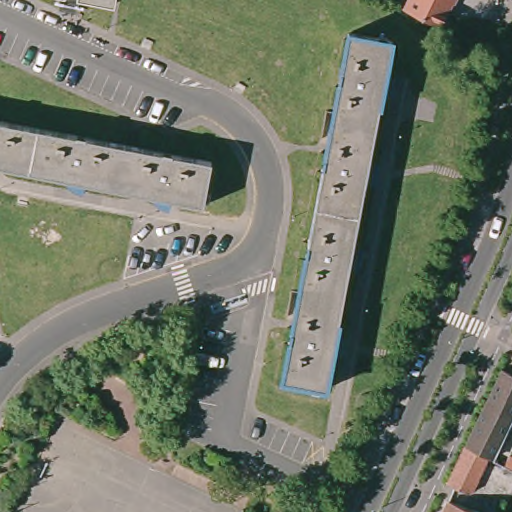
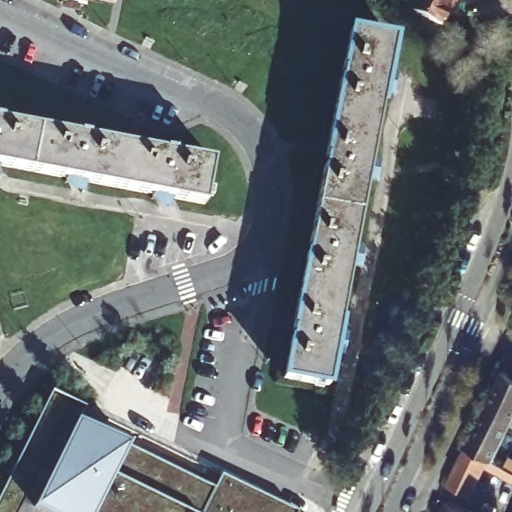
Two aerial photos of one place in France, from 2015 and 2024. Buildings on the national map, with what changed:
unchanged [(442,27),(402,9),(406,0),(455,0),(442,27)]
demolished [(476,46),(473,0),(497,0),(501,43),(496,44),(476,46)]
unchanged [(392,35),(326,381),(282,373),(349,26),(392,35)]
unchanged [(199,200),(0,162),(0,116),(207,156),(199,200)]
unchanged [(464,445),(509,352),(512,354),(512,414),(491,458),(487,456),(464,445)]
new [(87,409),(84,421),(212,487),(222,476),(288,512),(0,512),(0,496),(52,392),(87,409)]
unchanged [(468,493),(446,482),(464,445),(487,456),(468,493)]
unchanged [(488,512),(435,512),(443,494),(488,512)]

